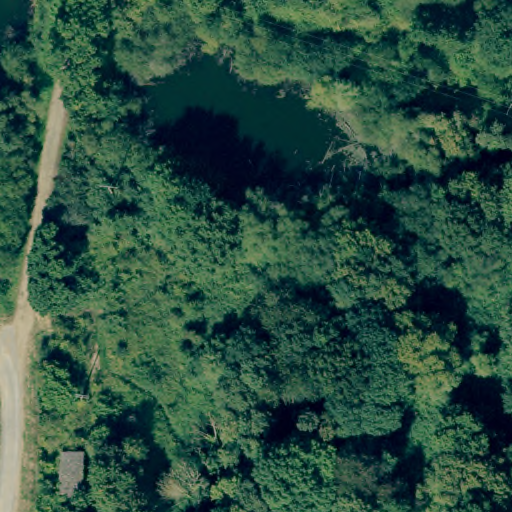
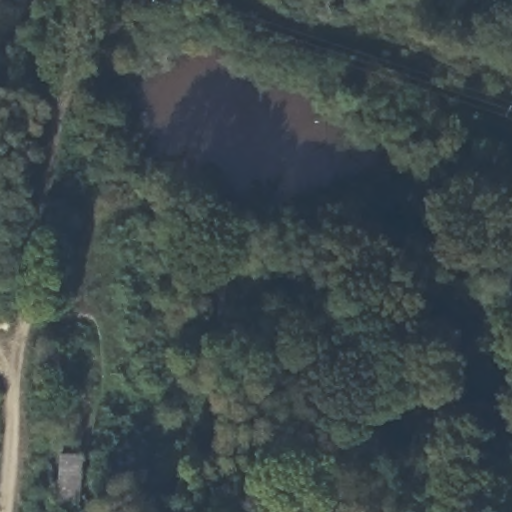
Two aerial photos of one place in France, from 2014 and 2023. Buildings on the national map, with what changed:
unchanged [(59,455),(81,454),(81,497),(59,497),(59,455)]

